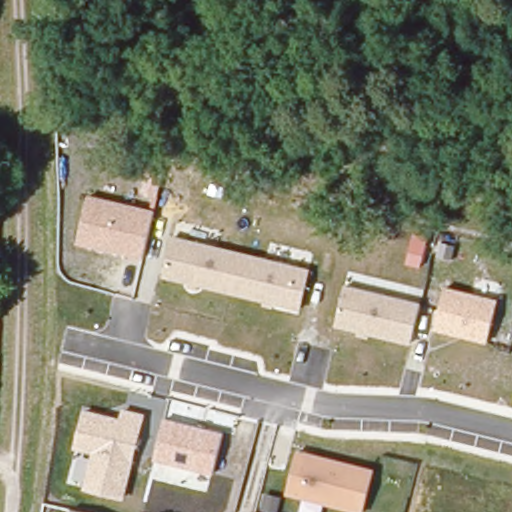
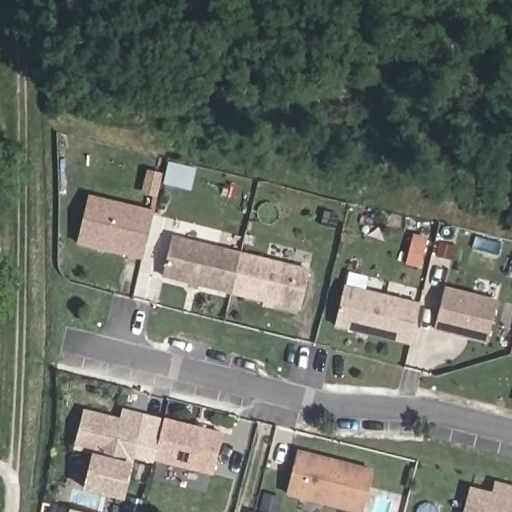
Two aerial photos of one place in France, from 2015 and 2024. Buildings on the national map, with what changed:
unchanged [(144,261),(79,245),(91,195),(155,211),(144,261)]
unchanged [(300,310),(165,279),(173,237),(310,270),(300,310)]
unchanged [(412,345),(337,327),(346,286),(421,303),(412,345)]
unchanged [(446,290),(499,303),(489,343),(436,330),(446,290)]
unchanged [(124,499),(83,491),(84,485),(75,482),(80,457),(90,459),(92,454),(75,448),(86,410),(119,420),(123,409),(145,415),(124,499)]
unchanged [(213,476),(156,463),(166,419),(224,433),(213,476)]
unchanged [(363,512),(356,512),(289,497),(300,452),(374,470),(363,512)]
new [(468,486),(492,493),(494,481),(512,485),(512,512),(462,512),(468,486)]
unchanged [(73,510),(82,512),(72,512),(73,510)]

